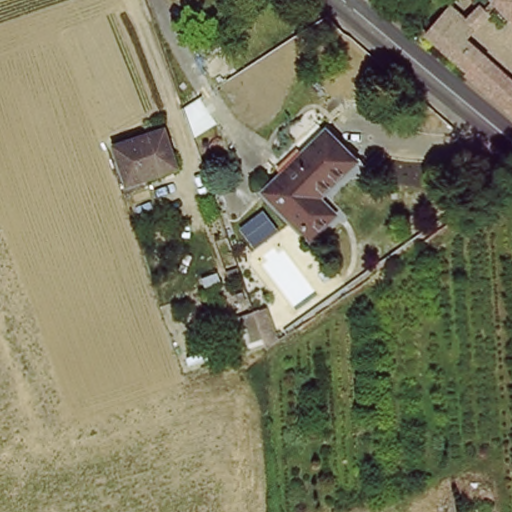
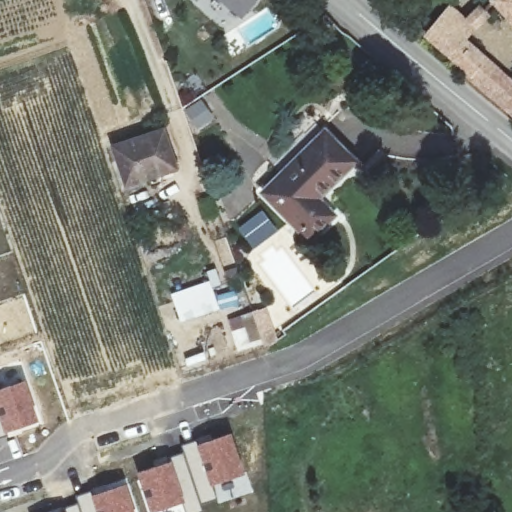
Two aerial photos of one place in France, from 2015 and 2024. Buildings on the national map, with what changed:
new [(196,2),(193,0),(198,0),(196,2)]
new [(236,15),(217,0),(249,0),(236,15)]
unchanged [(487,4),(491,0),(512,0),(512,30),(487,4)]
unchanged [(424,34),(452,2),(473,20),(464,32),(512,74),(512,109),(424,34)]
unchanged [(118,146),(170,130),(180,169),(128,184),(118,146)]
unchanged [(261,191),(327,132),(359,164),(319,199),(335,215),(308,239),(261,191)]
new [(211,281),(208,272),(216,269),(221,284),(212,288),(220,310),(181,323),(173,294),(211,281)]
new [(266,308),(278,342),(271,345),(266,345),(264,342),(239,353),(228,320),(266,308)]
new [(38,420),(6,431),(9,437),(0,440),(0,391),(25,382),(38,420)]
new [(200,503),(203,512),(185,512),(183,503),(157,512),(149,512),(135,471),(171,459),(170,456),(183,452),(181,445),(195,441),(231,431),(246,472),(253,492),(218,503),(216,497),(200,503)]
new [(136,512),(96,512),(90,491),(125,481),(136,512)]
new [(96,512),(80,512),(77,502),(75,495),(90,491),(96,512)]
new [(80,512),(65,512),(64,509),(63,507),(77,502),(80,512)]
new [(65,512),(56,512),(64,509),(65,512)]

